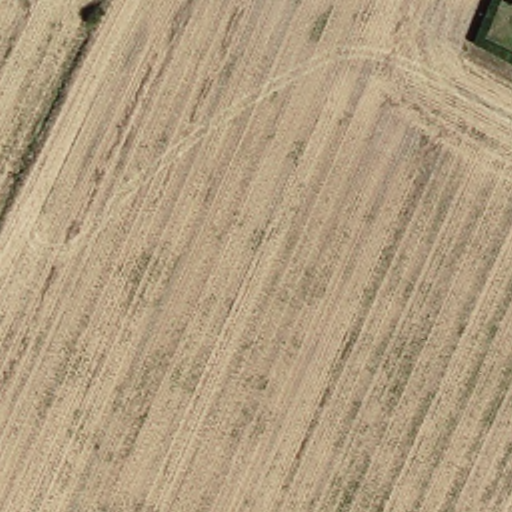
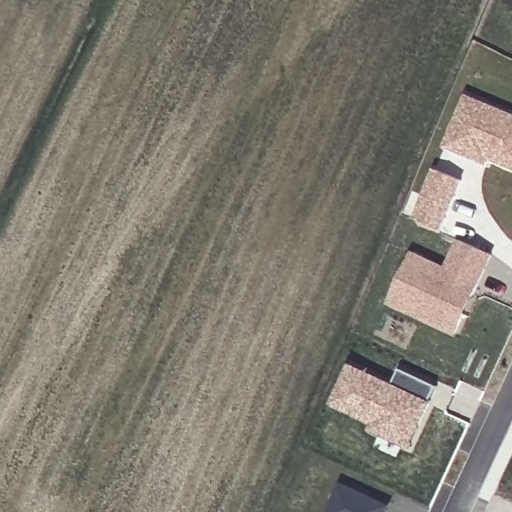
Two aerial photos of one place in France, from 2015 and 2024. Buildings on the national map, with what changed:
new [(467,94),(512,113),(512,168),(490,160),(488,166),(446,147),(467,94)]
new [(434,169),(464,181),(443,232),(414,219),(434,169)]
new [(452,334),(418,318),(385,303),(392,290),(408,254),(443,270),(457,241),(488,255),(469,297),(461,315),(452,334)]
new [(351,364),(395,384),(401,370),(438,387),(431,402),(434,403),(412,450),(371,431),(374,424),(332,405),(351,364)]
new [(385,508),(384,512),(330,512),(341,488),(385,508)]

